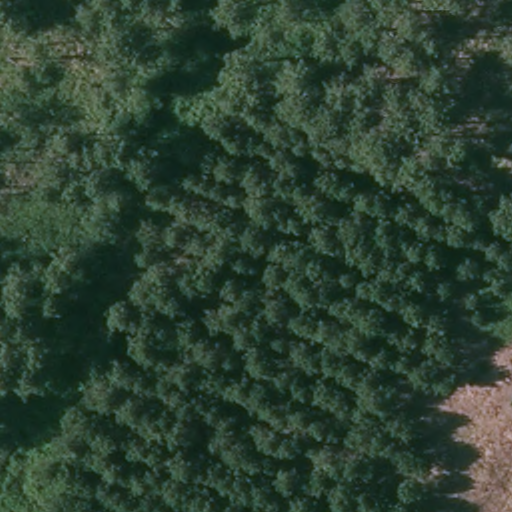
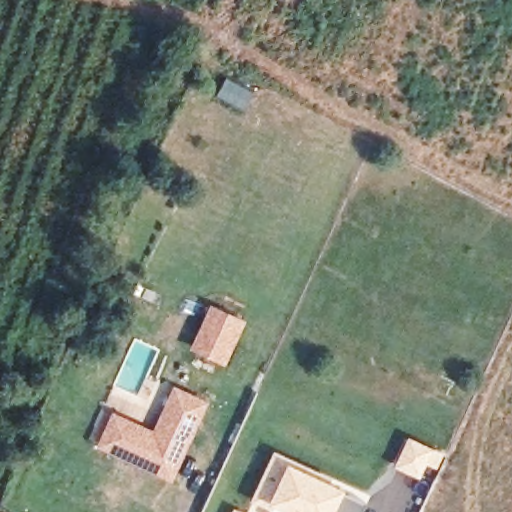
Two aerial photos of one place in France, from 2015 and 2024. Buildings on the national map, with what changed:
new [(247,321),(226,365),(191,350),(212,305),(247,321)]
new [(209,401),(173,483),(97,449),(113,412),(155,430),(176,385),(209,401)]
new [(333,489),(332,494),(372,512),(264,512),(260,510),(280,465),(314,480),(333,489)]

